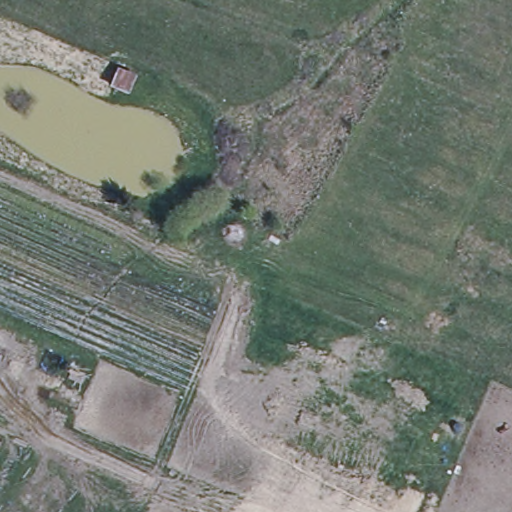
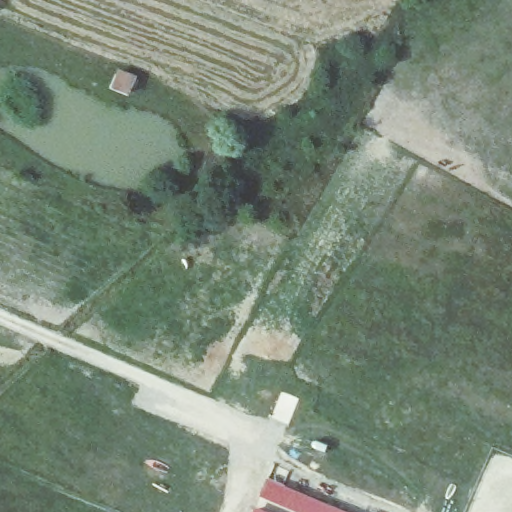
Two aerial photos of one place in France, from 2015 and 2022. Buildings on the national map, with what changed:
new [(269,475),(360,512),(320,512),(263,488),(269,475)]
new [(263,488),(320,512),(270,512),(255,506),(263,488)]
new [(255,506),(270,512),(253,512),(255,506)]

